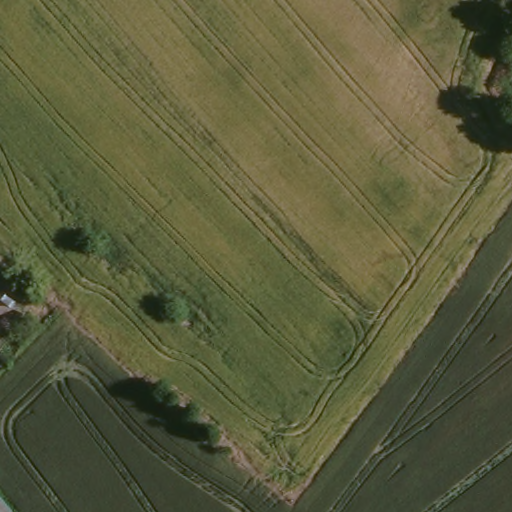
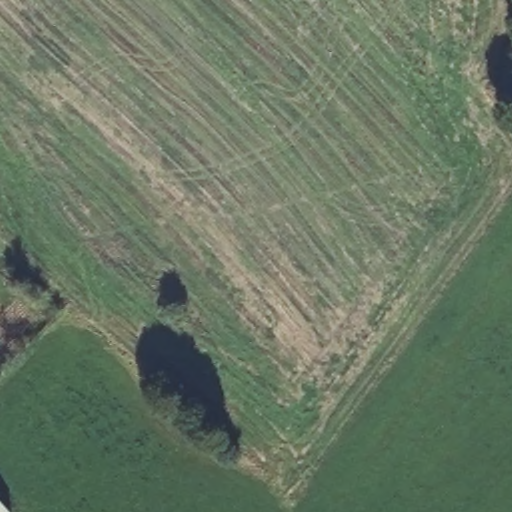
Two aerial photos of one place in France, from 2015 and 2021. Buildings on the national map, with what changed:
unchanged [(15,512),(0,512),(0,489),(18,510),(15,512)]

